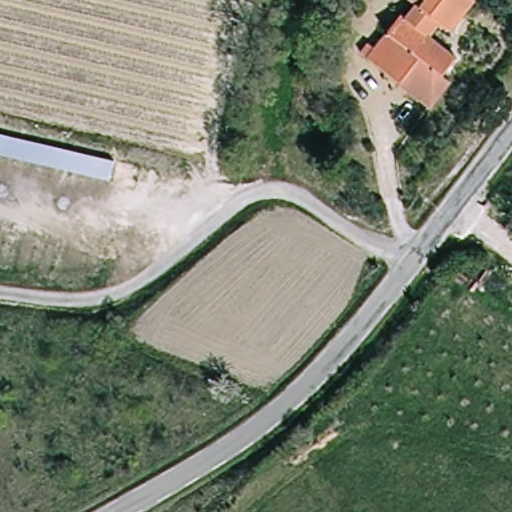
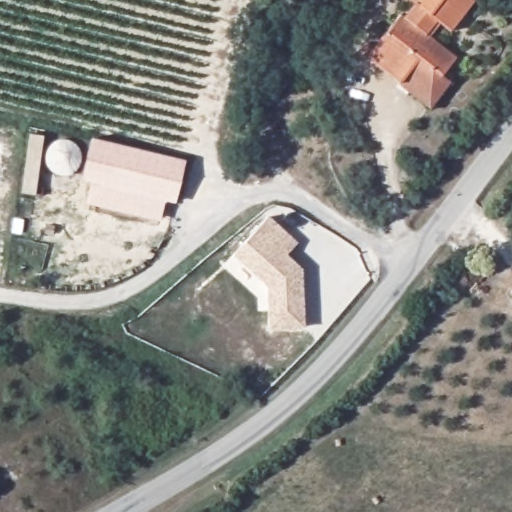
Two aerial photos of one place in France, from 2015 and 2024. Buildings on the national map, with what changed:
unchanged [(429,23),(412,11),(421,0),(473,0),(446,35),(429,23)]
unchanged [(428,107),(397,82),(357,50),(367,39),(374,45),(403,10),(409,15),(412,11),(429,23),(425,29),(455,53),(438,73),(450,82),(428,107)]
demolished [(0,157),(0,136),(92,158),(88,178),(0,157)]
new [(92,183),(82,181),(92,138),(186,160),(175,204),(165,201),(160,222),(87,204),(92,183)]
new [(302,267),(304,328),(270,329),(267,286),(233,256),(267,215),(297,243),(288,254),(302,267)]

